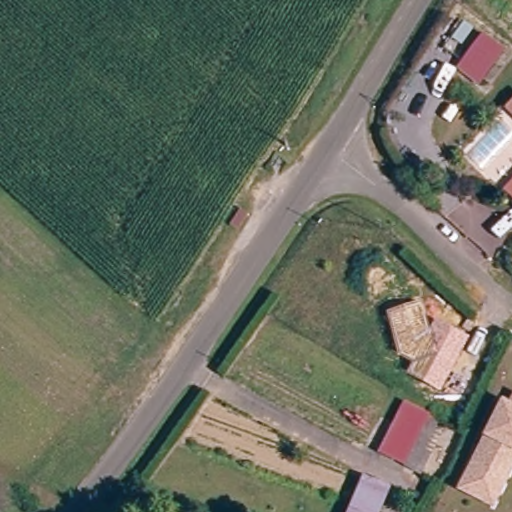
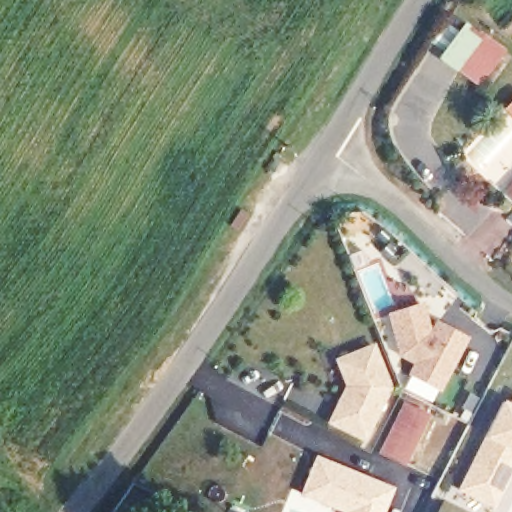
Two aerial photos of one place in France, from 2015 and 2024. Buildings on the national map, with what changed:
unchanged [(455,65),(472,42),(491,56),(474,80),(468,87),(449,73),(455,65)]
unchanged [(512,108),(512,126),(498,116),(506,104),(512,108)]
unchanged [(429,332),(436,317),(469,336),(440,392),(408,373),(413,362),(399,356),(387,312),(422,301),(429,332)]
new [(343,381),(333,356),(368,342),(384,384),(358,435),(324,417),(343,381)]
unchanged [(457,488),(501,399),(507,402),(512,393),(512,445),(485,501),(457,488)]
unchanged [(404,405),(443,419),(421,469),(382,453),(404,405)]
unchanged [(512,466),(493,505),(485,501),(512,445),(512,466)]
new [(315,455),(364,476),(351,512),(340,512),(299,495),(315,455)]
unchanged [(364,476),(395,487),(384,512),(351,512),(364,476)]

